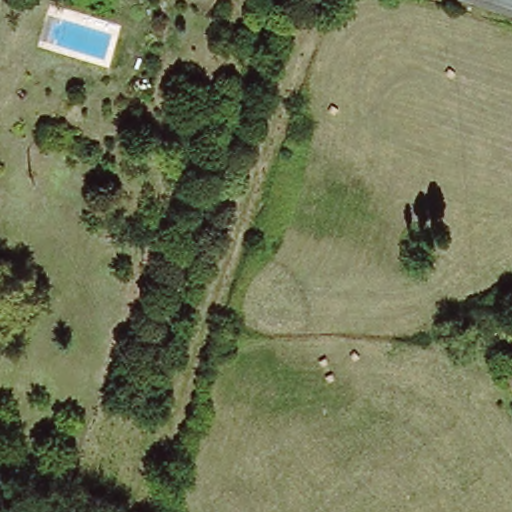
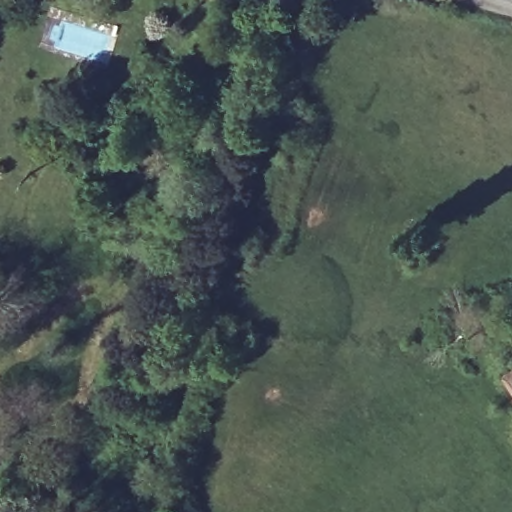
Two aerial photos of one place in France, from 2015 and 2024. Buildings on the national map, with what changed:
unchanged [(512,373),(512,408),(495,386),(512,373)]

